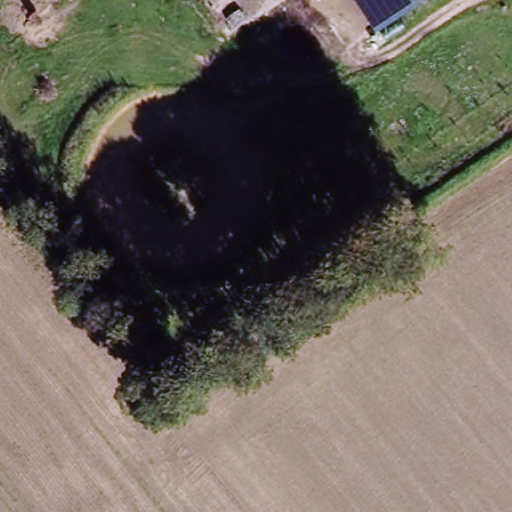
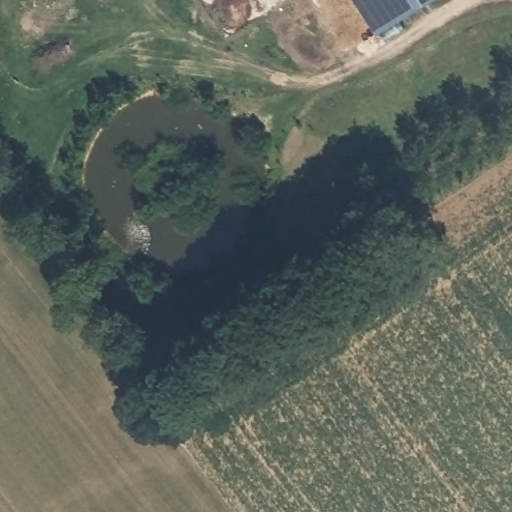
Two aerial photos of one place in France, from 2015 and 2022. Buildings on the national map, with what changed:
unchanged [(375,34),(353,0),(417,0),(420,5),(375,34)]
unchanged [(428,0),(420,5),(417,0),(428,0)]

